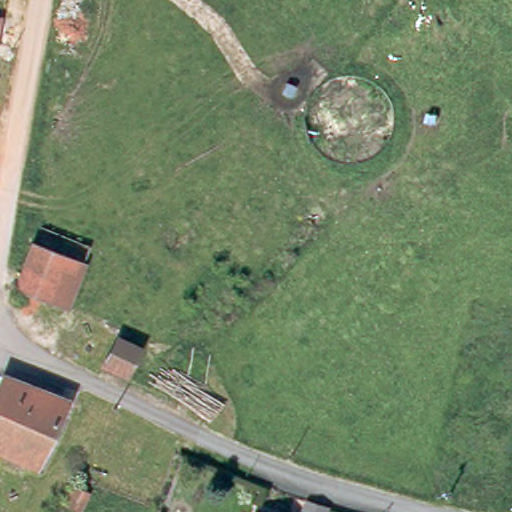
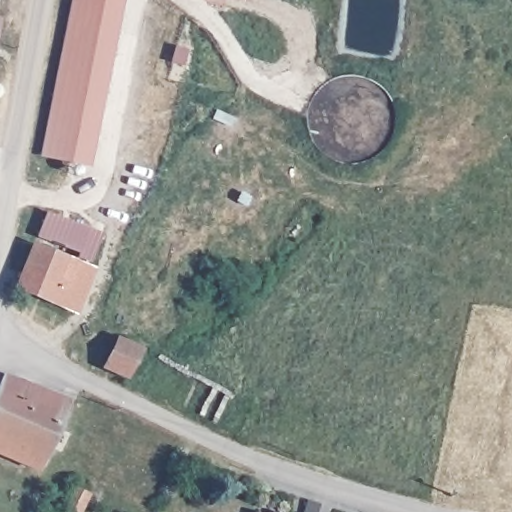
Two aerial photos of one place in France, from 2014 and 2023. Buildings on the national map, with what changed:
new [(91,166),(39,155),(69,0),(124,0),(91,166)]
unchanged [(55,303),(8,281),(36,220),(83,242),(55,303)]
unchanged [(72,311),(55,303),(83,242),(100,250),(72,311)]
unchanged [(100,363),(114,336),(141,349),(127,376),(100,363)]
unchanged [(61,401),(32,464),(0,449),(0,374),(61,401)]
unchanged [(81,501),(87,487),(102,494),(96,507),(94,512),(88,512),(78,507),(81,501)]
unchanged [(268,512),(258,512),(259,508),(268,512)]

